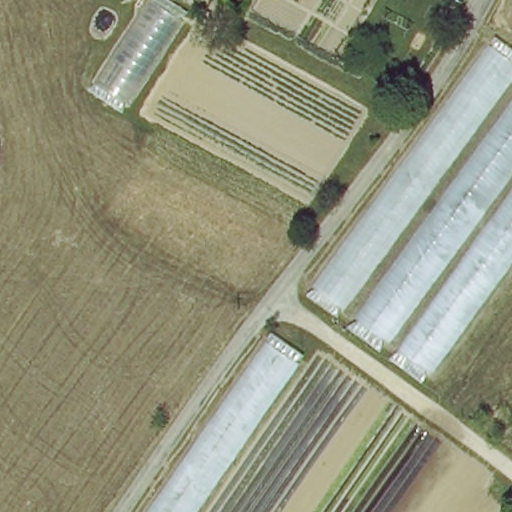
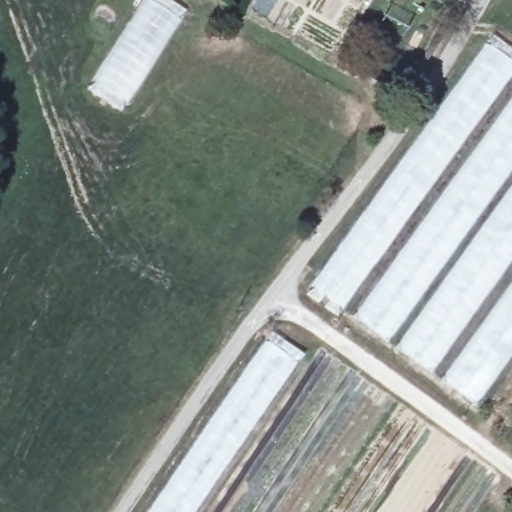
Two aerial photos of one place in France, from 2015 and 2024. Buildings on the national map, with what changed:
unchanged [(119,111),(85,89),(141,0),(164,0),(182,12),(119,111)]
unchanged [(489,41),(512,58),(512,78),(341,309),(313,286),(489,41)]
unchanged [(377,351),(346,325),(512,90),(512,165),(377,351)]
unchanged [(421,381),(386,358),(512,184),(512,255),(421,381)]
new [(512,255),(512,351),(474,405),(427,372),(512,255)]
unchanged [(299,359),(193,512),(151,512),(267,342),(299,359)]

